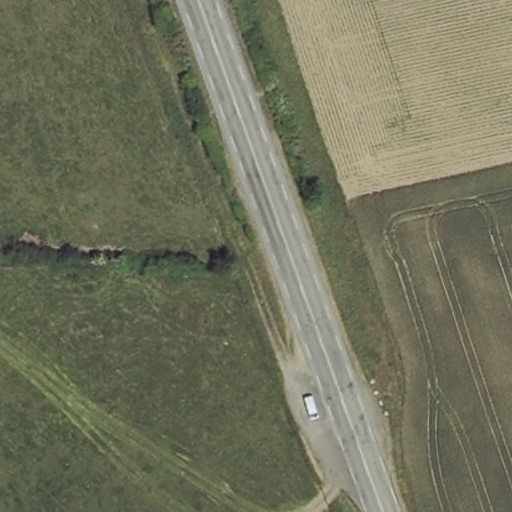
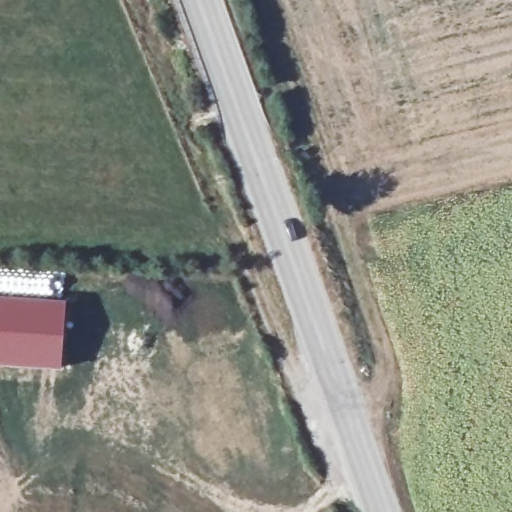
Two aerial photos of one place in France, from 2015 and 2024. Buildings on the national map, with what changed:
new [(22,270),(66,272),(64,297),(67,297),(62,368),(0,364),(0,291),(21,291),(22,270)]

